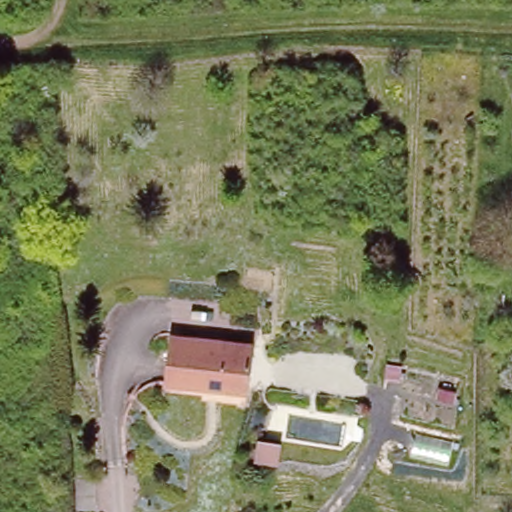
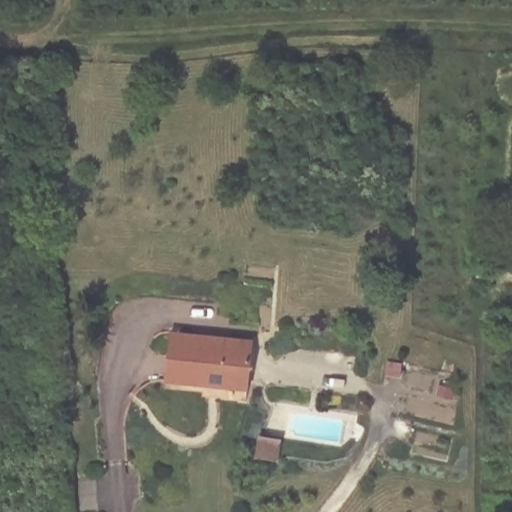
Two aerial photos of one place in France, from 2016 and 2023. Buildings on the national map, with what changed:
unchanged [(171,332),(253,341),(247,385),(165,378),(171,332)]

